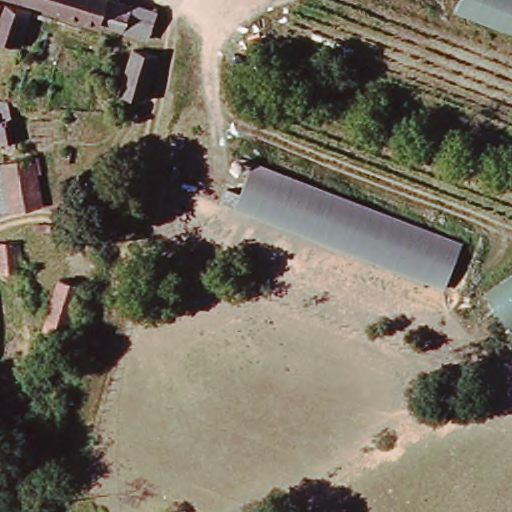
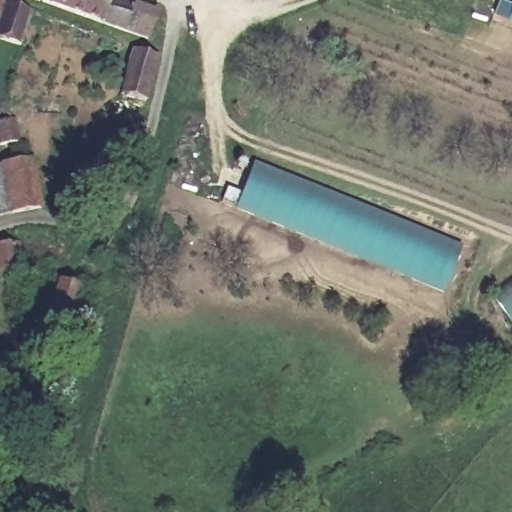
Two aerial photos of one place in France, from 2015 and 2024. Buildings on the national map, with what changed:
unchanged [(124,37),(50,9),(20,0),(113,0),(117,2),(115,8),(132,14),(155,22),(147,47),(124,37)]
demolished [(512,36),(454,18),(460,0),(512,0),(512,36)]
new [(493,16),(499,0),(500,0),(512,5),(512,24),(509,22),(493,16)]
unchanged [(27,11),(13,47),(0,42),(0,2),(27,11)]
unchanged [(133,47),(152,55),(139,96),(118,89),(133,47)]
unchanged [(0,145),(0,102),(8,102),(17,150),(10,151),(9,143),(0,145)]
unchanged [(460,242),(444,285),(219,200),(225,187),(240,192),(252,163),(460,242)]
unchanged [(40,167),(42,177),(36,179),(38,210),(2,212),(0,212),(0,169),(40,167)]
unchanged [(0,276),(0,243),(15,242),(17,276),(0,276)]
unchanged [(60,277),(77,283),(60,336),(42,331),(60,277)]
unchanged [(512,277),(512,332),(485,297),(512,277)]

